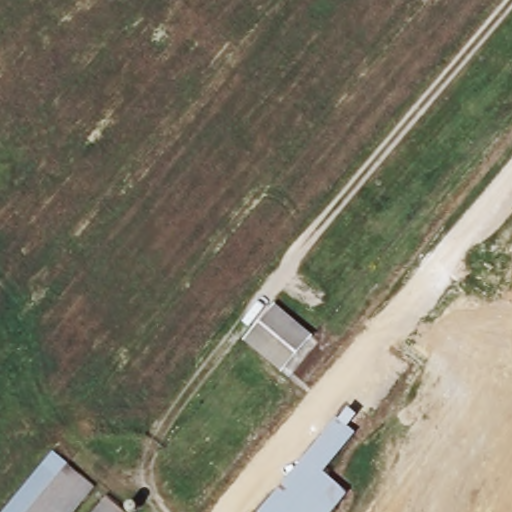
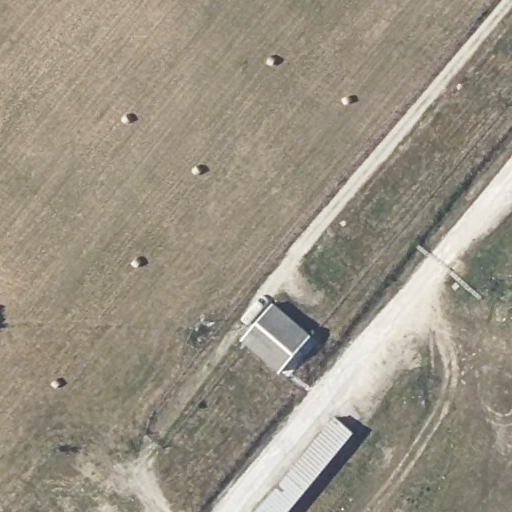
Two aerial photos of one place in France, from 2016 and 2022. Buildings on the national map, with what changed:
unchanged [(244,332),(267,303),(306,336),(283,364),(277,372),(270,366),(238,340),(244,332)]
unchanged [(332,416),(346,427),(276,512),(254,512),(332,416)]
demolished [(103,486),(80,512),(9,512),(62,451),(103,486)]
demolished [(113,495),(135,512),(99,512),(113,495)]

